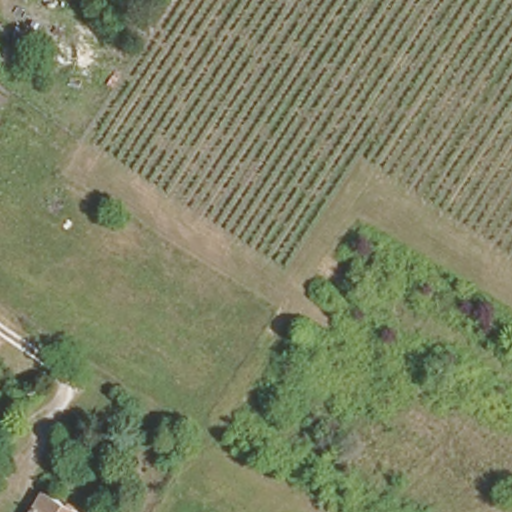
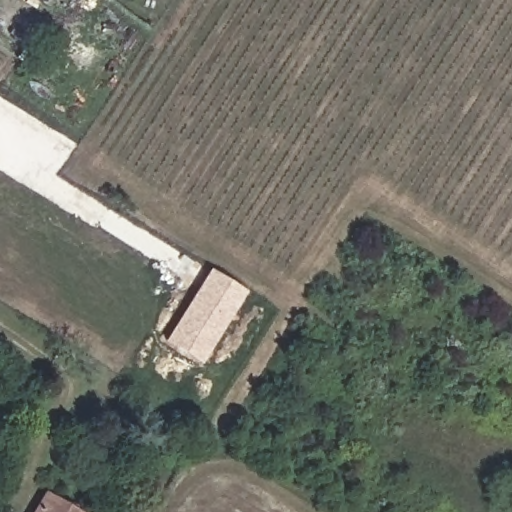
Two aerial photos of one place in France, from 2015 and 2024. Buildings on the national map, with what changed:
new [(208,268),(245,291),(200,362),(163,340),(208,268)]
unchanged [(47,487),(84,512),(31,512),(47,487)]

